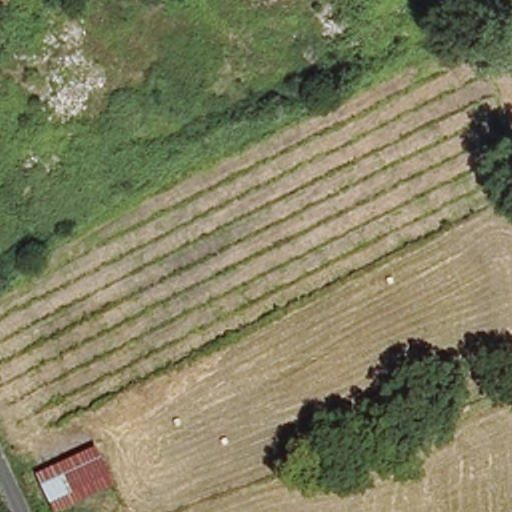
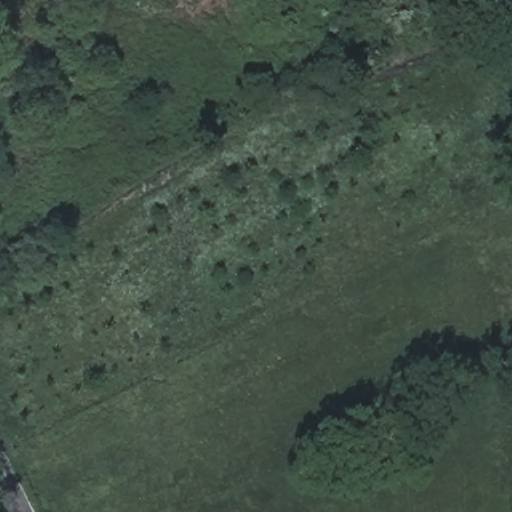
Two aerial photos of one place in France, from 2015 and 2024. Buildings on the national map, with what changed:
demolished [(116,481),(56,509),(40,469),(101,444),(116,481)]

